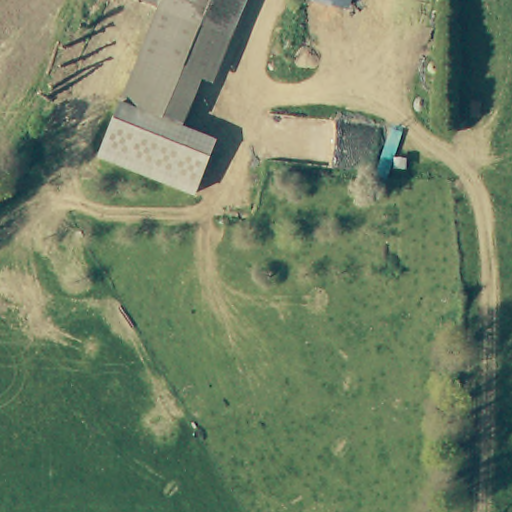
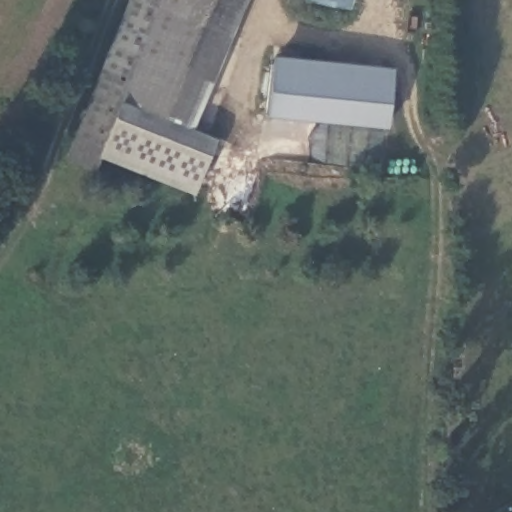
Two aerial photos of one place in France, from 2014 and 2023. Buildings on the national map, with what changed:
unchanged [(154,0),(234,0),(222,29),(162,4),(154,0)]
unchanged [(234,0),(247,0),(213,82),(202,77),(222,29),(234,0)]
unchanged [(336,0),(350,0),(349,3),(336,0)]
unchanged [(222,29),(184,122),(124,97),(162,4),(222,29)]
new [(275,62),(395,75),(390,125),(270,112),(275,62)]
unchanged [(184,122),(216,137),(195,194),(98,156),(124,97),(184,122)]

